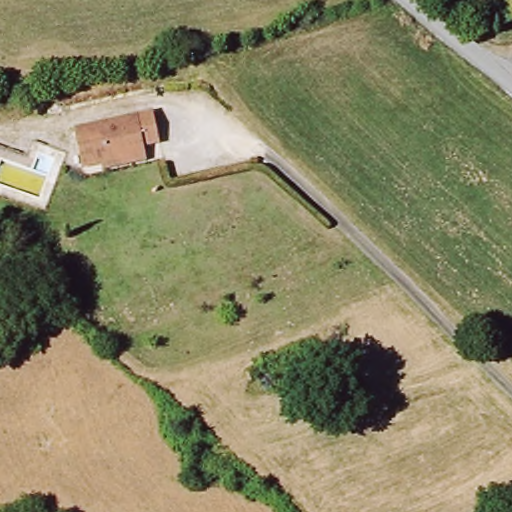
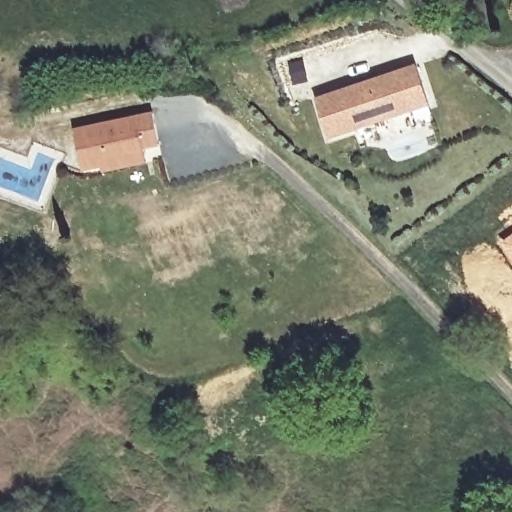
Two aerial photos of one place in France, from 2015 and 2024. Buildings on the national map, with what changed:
new [(415,68),(427,106),(326,138),(314,100),(415,68)]
unchanged [(103,174),(102,161),(85,164),(77,126),(155,110),(163,143),(146,149),(149,165),(103,174)]
new [(512,260),(498,241),(512,232),(512,260)]

